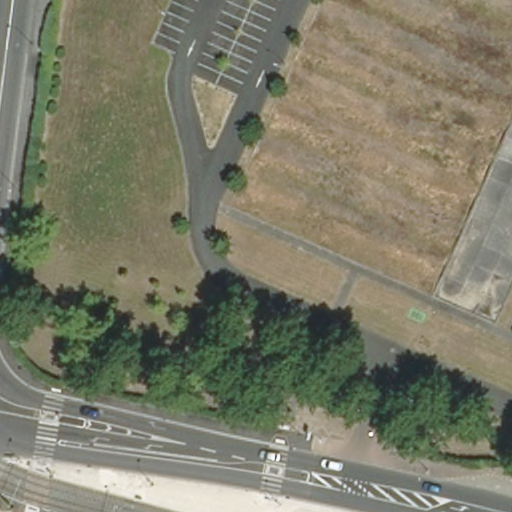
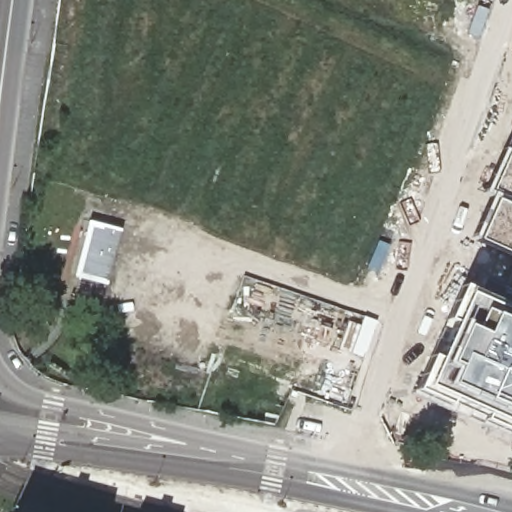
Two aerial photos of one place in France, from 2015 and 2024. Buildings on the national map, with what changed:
new [(512,156),(512,200),(492,191),(508,155),(512,156)]
new [(479,240),(496,202),(512,210),(512,255),(479,240)]
new [(90,224),(120,232),(106,285),(75,277),(90,224)]
new [(501,291),(512,268),(512,296),(501,291)]
new [(475,290),(480,281),(501,291),(512,296),(512,433),(415,390),(429,355),(435,358),(451,322),(445,320),(461,285),(475,290)]

